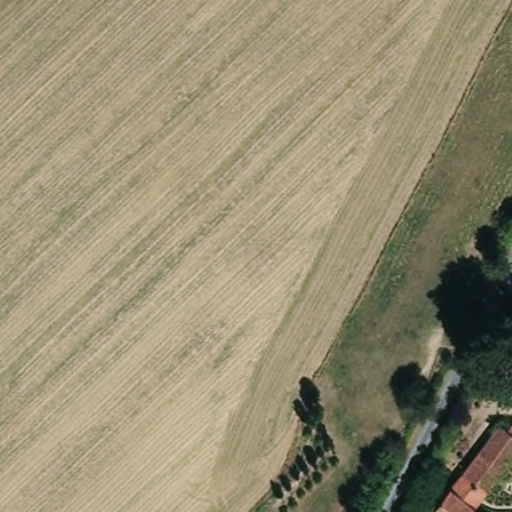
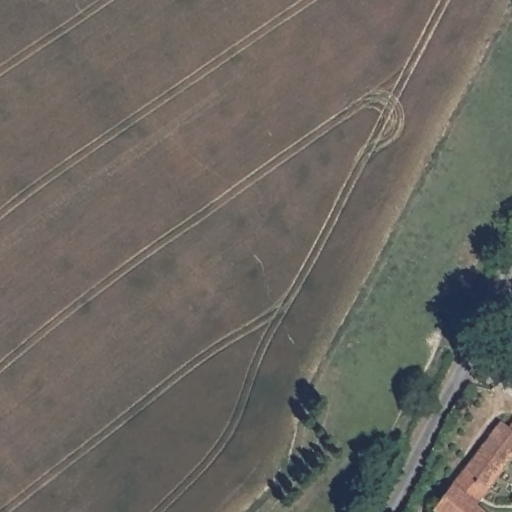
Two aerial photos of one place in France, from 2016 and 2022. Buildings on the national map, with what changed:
unchanged [(431,509),(498,425),(503,429),(512,419),(512,452),(473,504),(484,512),(434,512),(431,509)]

